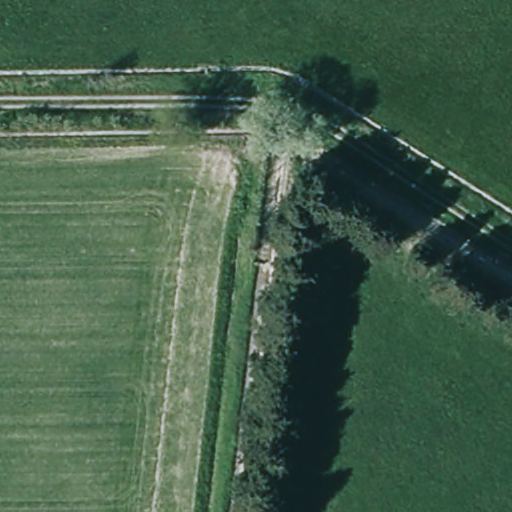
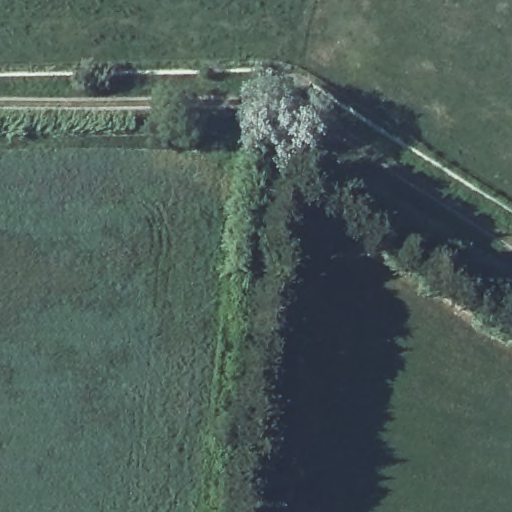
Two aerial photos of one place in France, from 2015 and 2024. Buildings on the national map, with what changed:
[]

